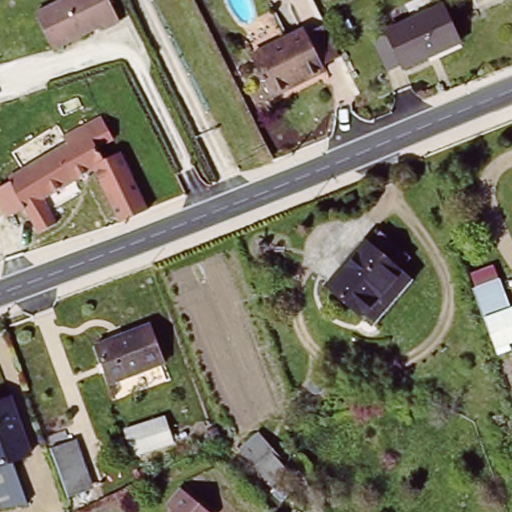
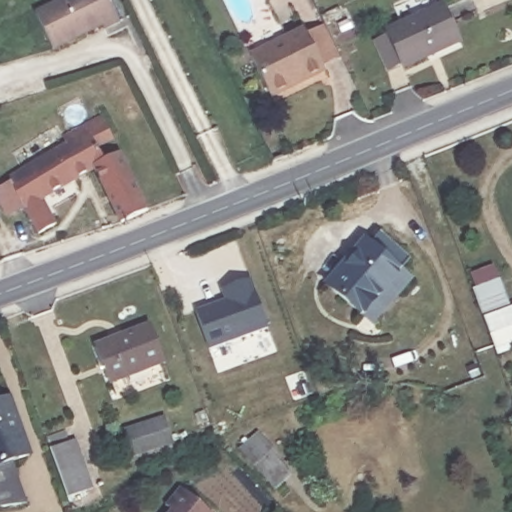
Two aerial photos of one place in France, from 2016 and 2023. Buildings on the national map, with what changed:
unchanged [(114,24),(116,28),(102,34),(100,30),(55,51),(38,16),(71,0),(102,0),(114,24)]
unchanged [(378,39),(388,34),(385,27),(440,2),(458,39),(404,64),(402,60),(390,65),(378,39)]
unchanged [(273,97),(256,58),(287,43),(290,49),(308,41),(321,71),(304,78),(306,82),(273,97)]
unchanged [(0,189),(10,185),(2,169),(5,168),(18,162),(23,173),(64,153),(66,152),(62,144),(93,128),(98,126),(108,148),(95,155),(99,166),(115,160),(130,154),(141,179),(128,185),(145,218),(117,229),(89,176),(38,199),(50,226),(43,228),(49,241),(39,245),(23,212),(6,219),(0,206),(0,189)]
unchanged [(60,232),(76,226),(80,237),(67,241),(65,242),(60,232)]
unchanged [(355,240),(360,243),(374,228),(405,254),(392,271),(398,279),(362,320),(319,280),(355,240)]
new [(211,349),(195,311),(223,300),(220,290),(250,279),(269,328),(211,349)]
unchanged [(500,282),(512,307),(512,332),(485,341),(470,291),(500,282)]
unchanged [(147,318),(161,355),(106,374),(93,338),(147,318)]
unchanged [(33,452),(19,457),(29,506),(0,511),(0,396),(10,392),(33,452)]
unchanged [(153,419),(162,446),(127,459),(117,431),(118,431),(153,419)]
unchanged [(282,473),(265,487),(237,449),(254,436),(282,473)]
unchanged [(50,452),(72,445),(88,492),(68,500),(50,452)]
unchanged [(181,493),(202,512),(169,512),(167,510),(181,493)]

